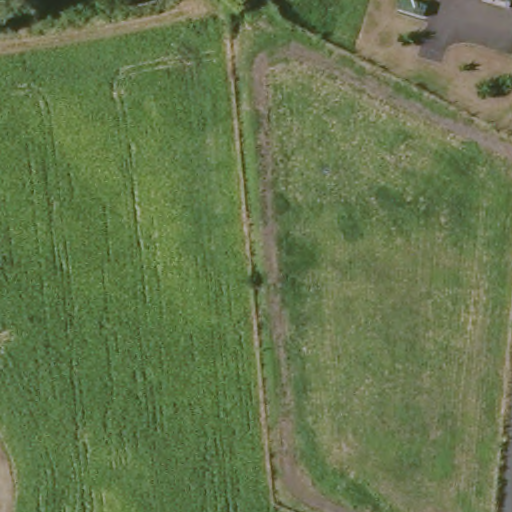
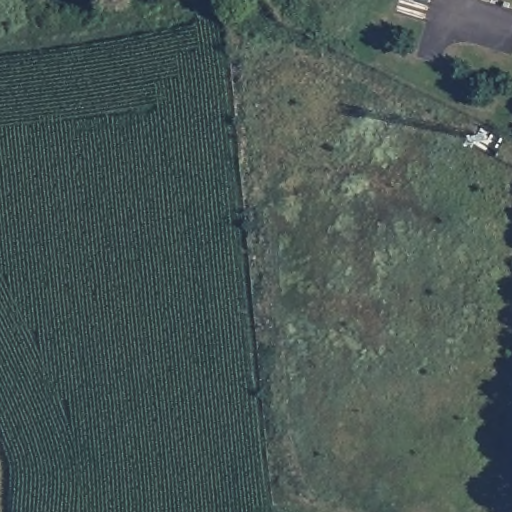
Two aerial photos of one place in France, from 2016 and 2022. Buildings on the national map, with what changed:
unchanged [(396,12),(399,0),(428,0),(423,19),(396,12)]

